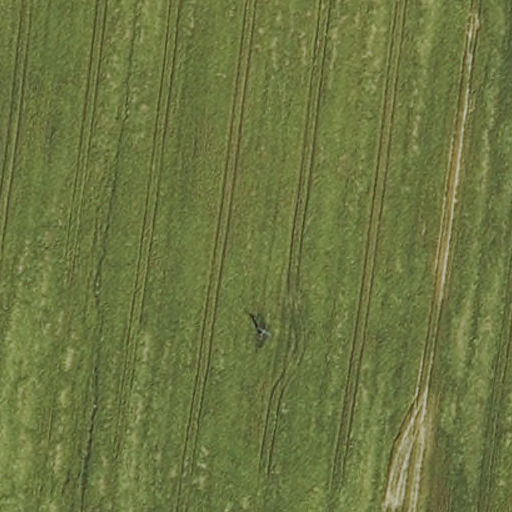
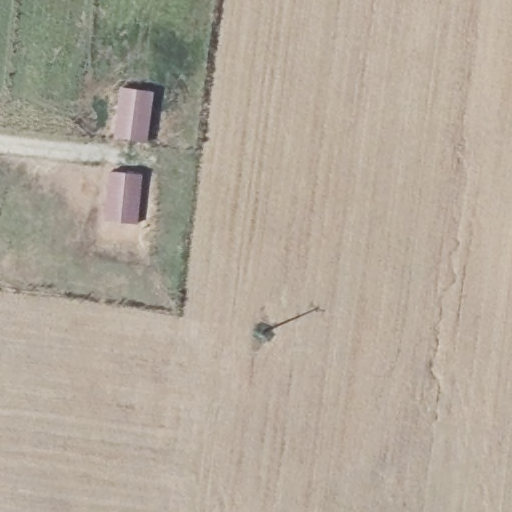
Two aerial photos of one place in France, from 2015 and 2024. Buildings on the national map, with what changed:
new [(120,86),(155,91),(148,142),(113,137),(120,86)]
new [(109,170),(143,173),(138,224),(104,221),(109,170)]

